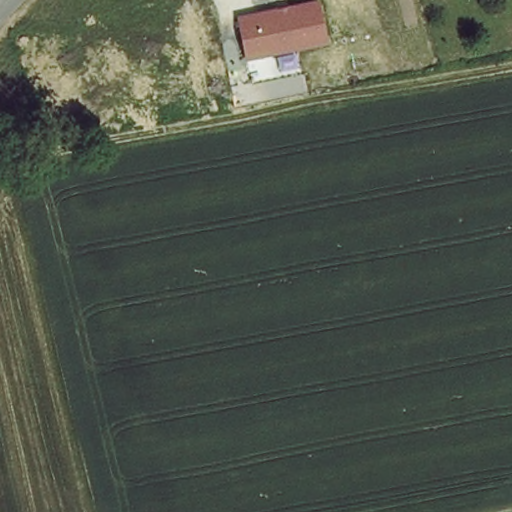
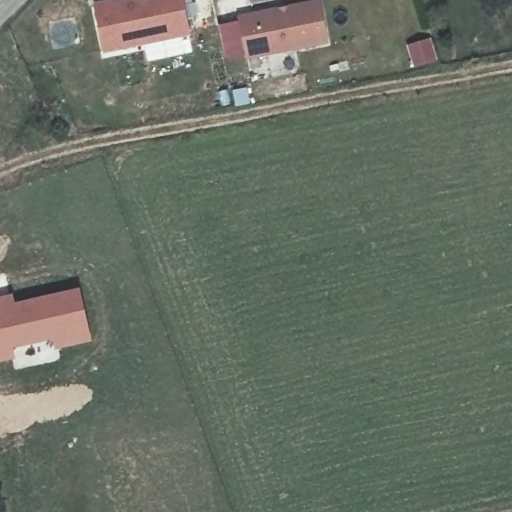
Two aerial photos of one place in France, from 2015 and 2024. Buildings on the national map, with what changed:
new [(94,4),(114,0),(182,0),(189,35),(104,52),(94,4)]
unchanged [(327,43),(246,59),(238,16),(319,0),(327,43)]
new [(60,362),(14,372),(9,356),(0,359),(0,301),(11,299),(13,305),(77,292),(87,338),(56,345),(60,362)]

